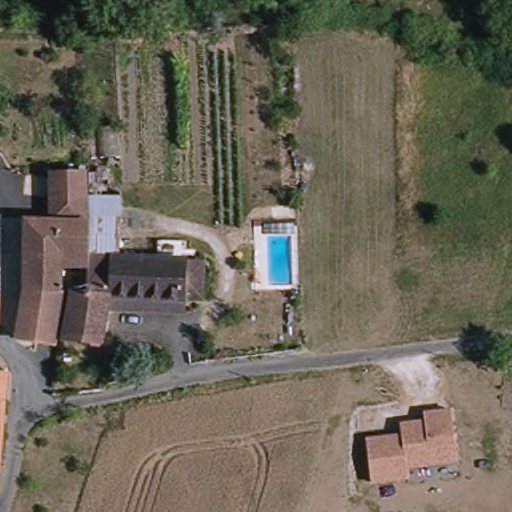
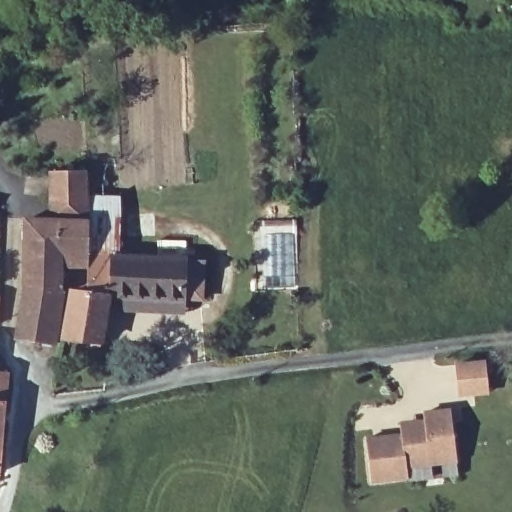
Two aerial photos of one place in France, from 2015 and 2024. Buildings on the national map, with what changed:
unchanged [(75,227),(73,270),(66,281),(49,281),(18,279),(20,221),(23,218),(23,216),(39,220),(41,164),(93,162),(94,229),(75,227)]
unchanged [(73,270),(75,227),(94,229),(96,259),(206,256),(208,297),(115,296),(103,340),(65,330),(76,290),(96,291),(96,270),(73,270)]
unchanged [(21,292),(17,285),(18,280),(18,279),(49,281),(44,295),(62,300),(49,346),(11,340),(13,336),(13,335),(21,292)]
unchanged [(0,323),(0,298),(1,298),(0,323)]
new [(489,396),(459,399),(456,362),(487,359),(489,396)]
unchanged [(0,374),(15,376),(10,418),(0,417),(0,374)]
unchanged [(404,436),(404,427),(425,424),(425,412),(454,408),(459,462),(411,467),(412,479),(372,483),(367,440),(404,436)]
unchanged [(4,474),(0,473),(0,417),(10,418),(4,474)]

